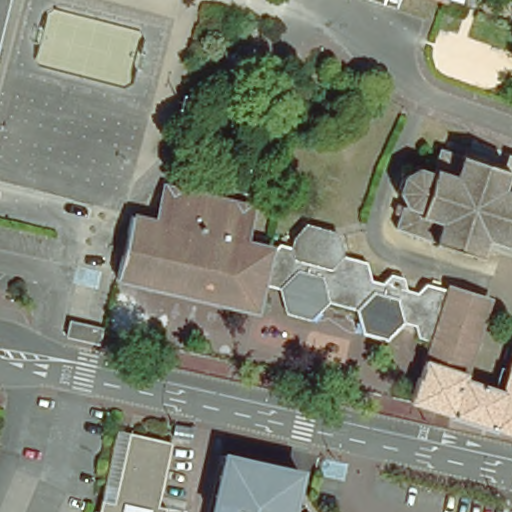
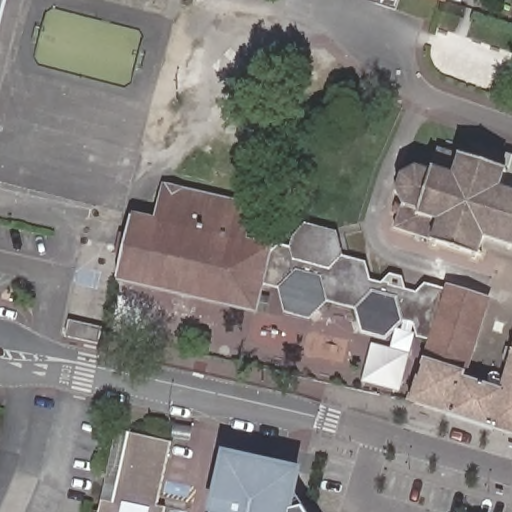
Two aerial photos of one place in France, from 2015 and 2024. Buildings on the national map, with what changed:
unchanged [(0,27),(0,0),(6,0),(0,27)]
unchanged [(375,3),(375,4),(362,0),(376,0),(375,3)]
unchanged [(397,12),(375,4),(375,3),(376,0),(400,0),(397,12)]
unchanged [(507,247),(508,244),(489,237),(488,241),(484,239),(480,252),(484,254),(483,257),(477,255),(476,259),(472,258),(474,254),(439,243),(438,246),(435,245),(436,243),(434,242),(435,240),(395,226),(399,214),(394,212),(396,204),(401,206),(404,204),(398,192),(392,193),(393,189),(398,189),(402,178),(398,175),(401,172),(403,175),(412,169),(413,165),(417,165),(417,169),(427,172),(429,168),(432,169),(438,149),(461,156),(462,152),(466,154),(465,157),(490,166),(492,162),(495,163),(498,153),(512,158),(512,245),(511,248),(507,247)]
unchanged [(260,284),(254,310),(117,278),(132,215),(156,221),(164,187),(251,206),(245,233),(264,238),(261,247),(268,249),(260,284)]
unchanged [(281,242),(293,245),(295,237),(309,223),(340,232),(344,254),(336,251),(332,265),(317,261),(272,250),(281,242)]
unchanged [(317,261),(332,265),(336,251),(344,254),(356,257),(366,260),(370,262),(370,265),(372,280),(385,283),(393,274),(395,275),(392,280),(382,304),(378,312),(376,319),(360,315),(360,318),(359,320),(356,309),(327,302),(310,320),(285,314),(279,289),(260,284),(268,249),(272,250),(317,261)]
unchanged [(360,318),(360,315),(376,319),(378,312),(382,304),(392,280),(395,275),(406,278),(407,289),(418,292),(428,283),(446,288),(446,289),(446,290),(430,341),(430,342),(416,338),(413,324),(402,321),(386,341),(362,334),(359,320),(360,318)]
unchanged [(492,429),(447,415),(448,413),(446,413),(408,402),(412,389),(417,376),(419,377),(430,342),(430,341),(446,290),(446,289),(446,288),(450,289),(451,287),(490,298),(462,376),(500,388),(505,390),(493,427),(492,429)]
unchanged [(70,320),(101,328),(97,343),(66,336),(70,320)]
new [(372,343),(391,348),(397,329),(401,330),(402,321),(413,324),(412,334),(413,334),(400,392),(362,382),(372,343)]
unchanged [(505,390),(500,388),(512,354),(512,433),(493,427),(505,390)]
unchanged [(101,499),(114,502),(120,472),(129,432),(172,442),(160,489),(157,505),(166,507),(164,512),(98,512),(99,503),(101,499)]
unchanged [(224,459),(224,455),(296,472),(291,493),(304,512),(211,512),(211,511),(224,459)]

